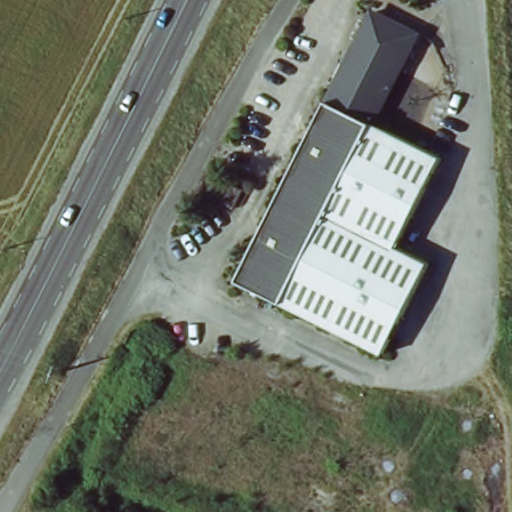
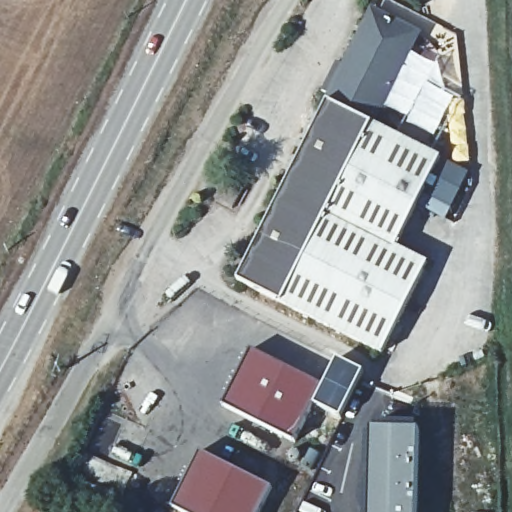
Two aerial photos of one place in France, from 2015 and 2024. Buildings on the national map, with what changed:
unchanged [(367,132),(435,166),(391,256),(424,272),(379,362),(233,290),(367,21),(412,43),(367,132)]
unchanged [(241,190),(232,209),(221,203),(230,184),(241,190)]
new [(252,349),(325,385),(297,441),(224,405),(252,349)]
new [(370,427),(419,428),(417,512),(369,512),(370,427)]
new [(272,488),(259,512),(184,512),(171,506),(196,450),(272,488)]

